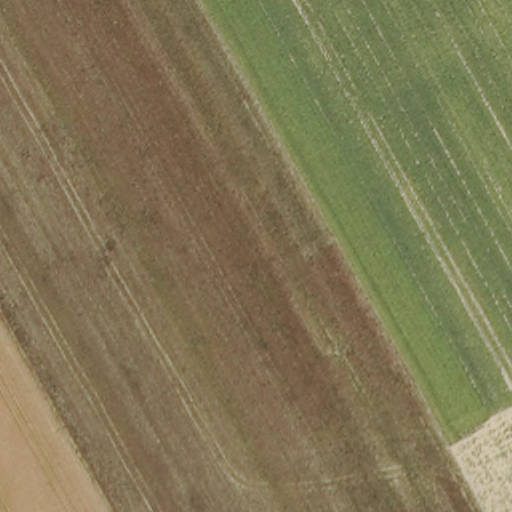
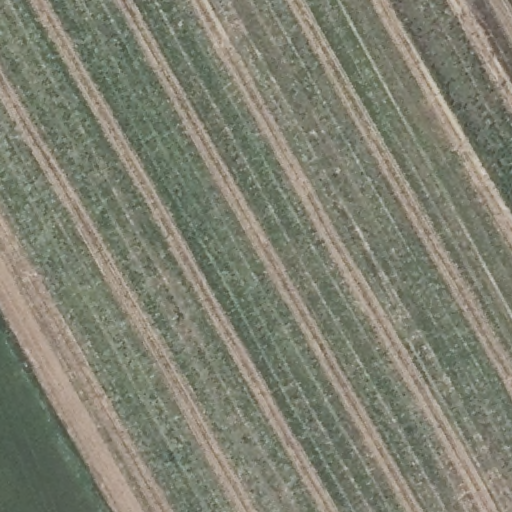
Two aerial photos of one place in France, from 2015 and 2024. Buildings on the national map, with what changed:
[]

